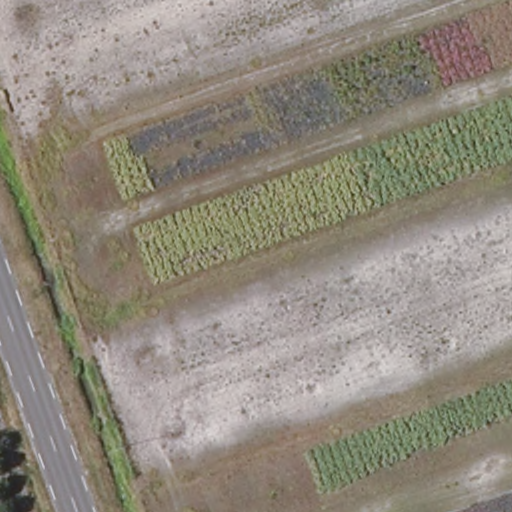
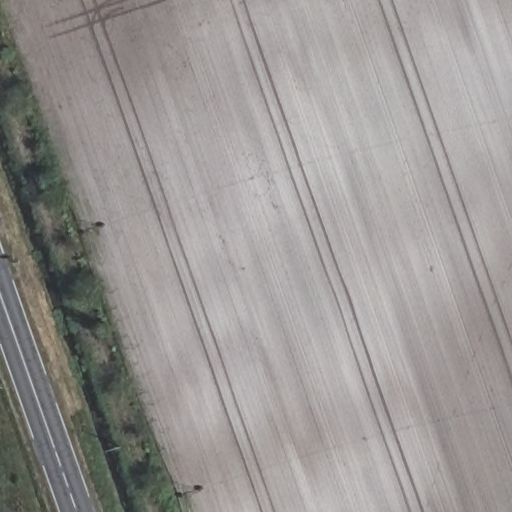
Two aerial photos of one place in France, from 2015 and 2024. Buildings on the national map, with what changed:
[]

